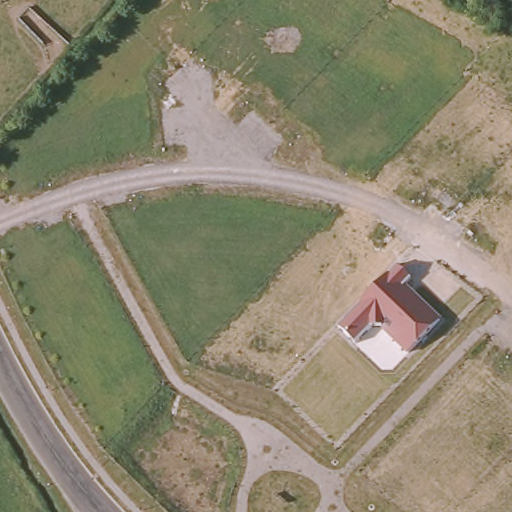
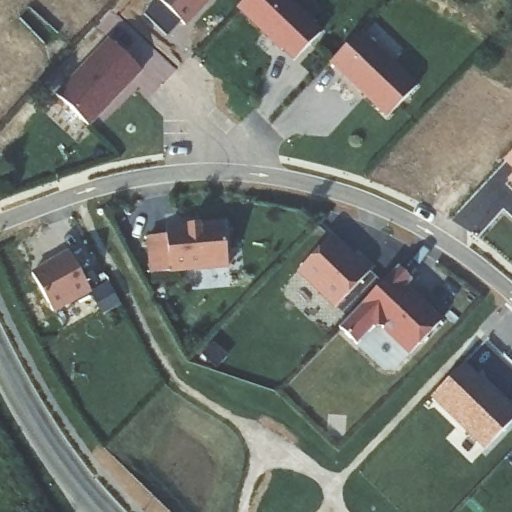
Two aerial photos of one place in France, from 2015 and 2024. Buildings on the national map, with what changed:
new [(163,0),(208,0),(186,22),(163,0)]
new [(237,9),(246,0),(291,0),(323,30),(292,60),(237,9)]
new [(385,115),(332,61),(362,31),(417,84),(385,115)]
new [(110,38),(142,69),(90,124),(58,94),(110,38)]
new [(503,160),(512,151),(512,170),(503,160)]
new [(506,180),(512,174),(512,185),(506,180)]
new [(167,275),(167,270),(150,273),(146,236),(165,235),(165,227),(224,221),(228,267),(167,275)]
new [(332,234),(357,258),(360,255),(373,267),(337,304),(300,267),(332,234)]
new [(51,312),(31,272),(70,250),(90,292),(51,312)]
unchanged [(411,282),(405,288),(442,322),(405,358),(379,331),(370,330),(352,346),(335,330),(396,267),(411,282)]
new [(120,309),(103,317),(92,297),(108,288),(120,309)]
new [(477,373),(476,374),(500,396),(498,396),(505,403),(506,402),(512,408),(512,420),(487,446),(432,394),(465,361),(477,373)]

